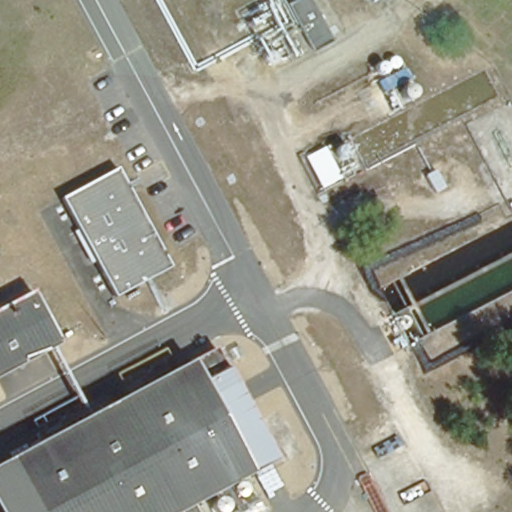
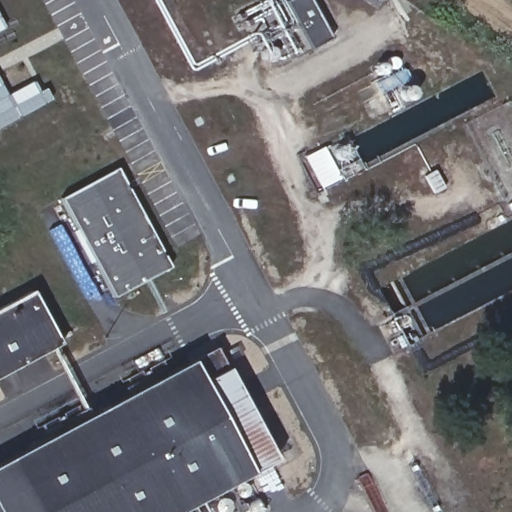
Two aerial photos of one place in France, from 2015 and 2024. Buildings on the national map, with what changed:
unchanged [(291,0),(313,0),(332,39),(310,51),(286,3),(291,0)]
new [(5,28),(0,31),(0,19),(5,28)]
new [(7,96),(40,78),(52,100),(0,128),(0,82),(7,96)]
unchanged [(171,273),(114,303),(75,230),(63,208),(121,178),(171,273)]
unchanged [(0,377),(0,314),(37,295),(64,346),(0,377)]
unchanged [(212,353),(271,465),(180,512),(0,512),(0,463),(212,353)]

